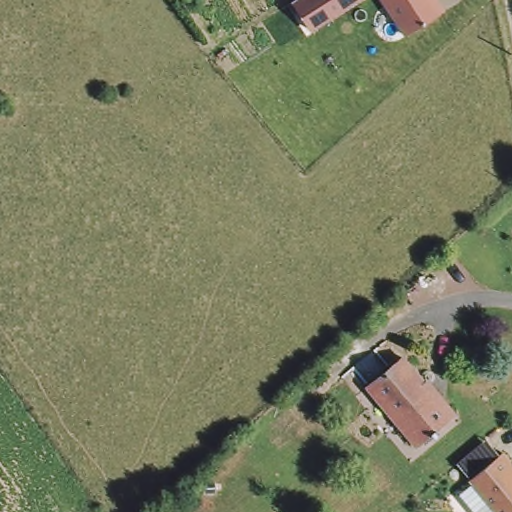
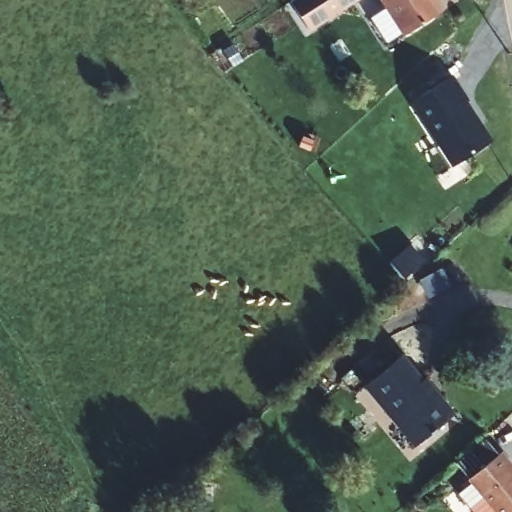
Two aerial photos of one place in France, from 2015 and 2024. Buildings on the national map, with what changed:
unchanged [(347,0),(307,26),(290,0),(291,0),(347,0)]
unchanged [(403,35),(382,0),(434,0),(441,11),(403,35)]
new [(485,139),(485,145),(451,167),(408,102),(448,76),(485,139)]
unchanged [(368,388),(402,358),(412,370),(427,385),(421,390),(448,416),(420,442),(380,400),(368,388)]
unchanged [(512,474),(512,512),(494,512),(468,481),(500,453),(512,465),(512,468),(510,471),(512,474)]

